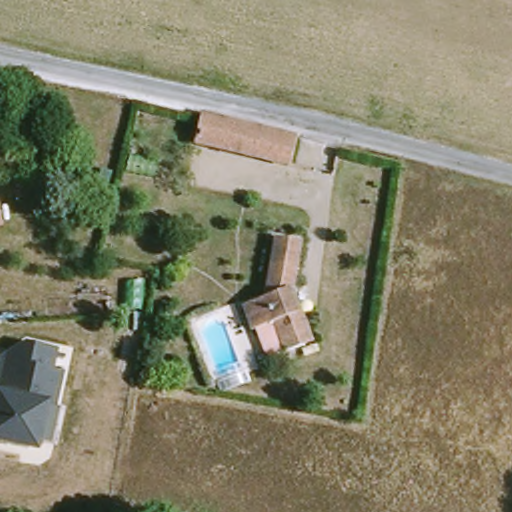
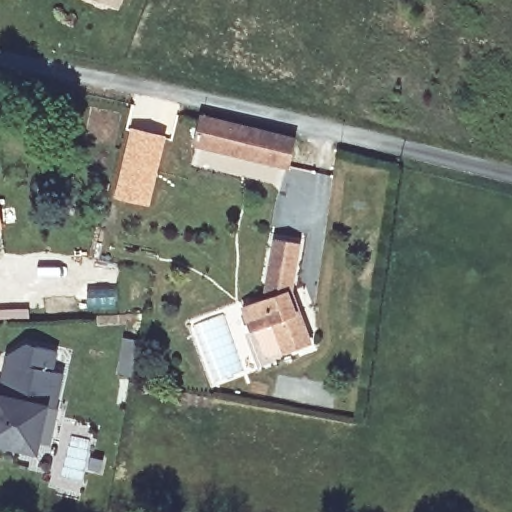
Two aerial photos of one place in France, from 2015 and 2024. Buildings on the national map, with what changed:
new [(106,0),(115,0),(114,4),(106,0)]
unchanged [(306,132),(300,161),(206,139),(211,112),(306,132)]
new [(130,127),(167,135),(150,205),(113,197),(130,127)]
unchanged [(18,222),(0,226),(0,197),(13,195),(18,222)]
unchanged [(311,346),(294,352),(292,347),(276,352),(268,327),(262,328),(254,303),(278,297),(288,237),(311,241),(303,289),(310,312),(316,332),(320,343),(311,346)]
unchanged [(54,371),(64,372),(55,410),(60,410),(51,447),(40,445),(38,453),(0,445),(0,380),(6,356),(27,344),(58,352),(54,371)]

